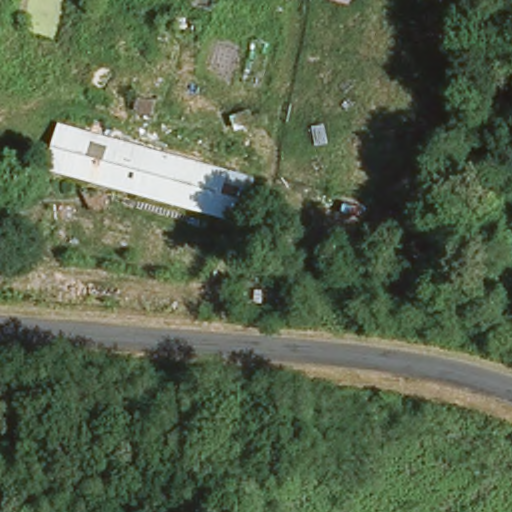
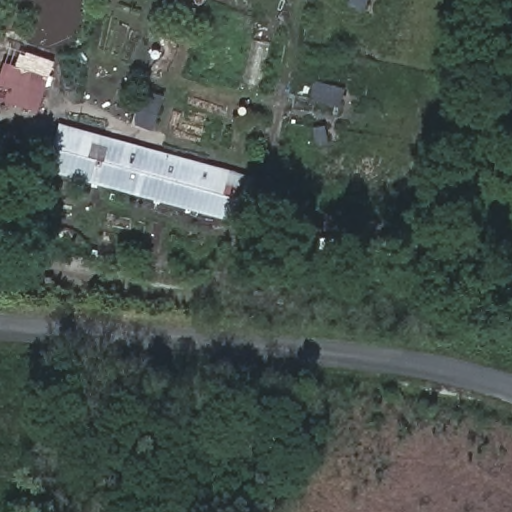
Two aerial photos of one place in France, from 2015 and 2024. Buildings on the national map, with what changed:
new [(37,110),(0,98),(0,74),(5,62),(47,76),(37,110)]
unchanged [(257,175),(243,222),(45,166),(60,121),(257,175)]

